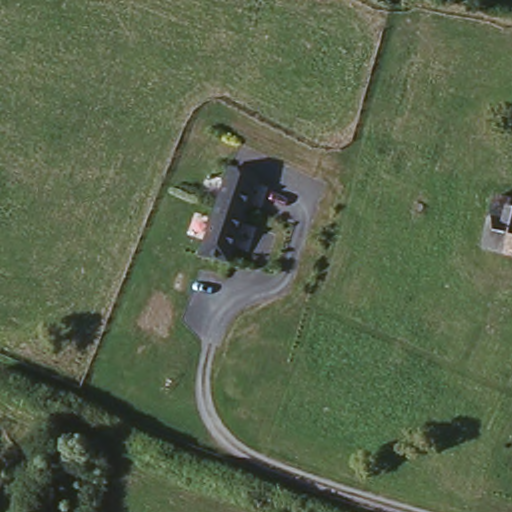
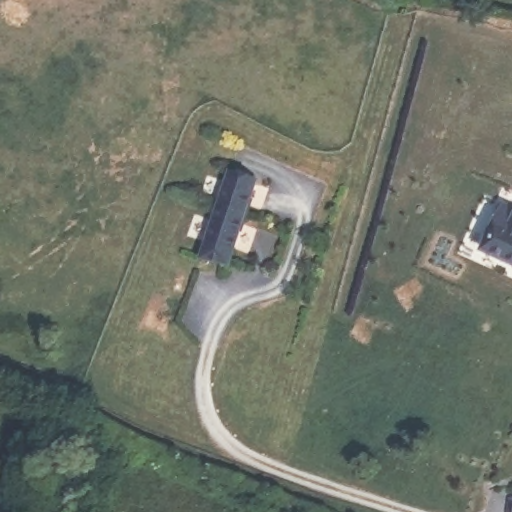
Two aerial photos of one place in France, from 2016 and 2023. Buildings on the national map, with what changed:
unchanged [(254,179),(233,264),(198,254),(202,235),(209,237),(226,172),(254,179)]
unchanged [(512,199),(512,253),(486,244),(502,196),(512,199)]

